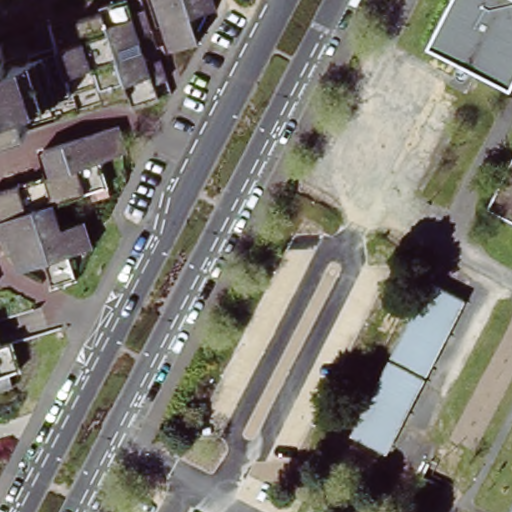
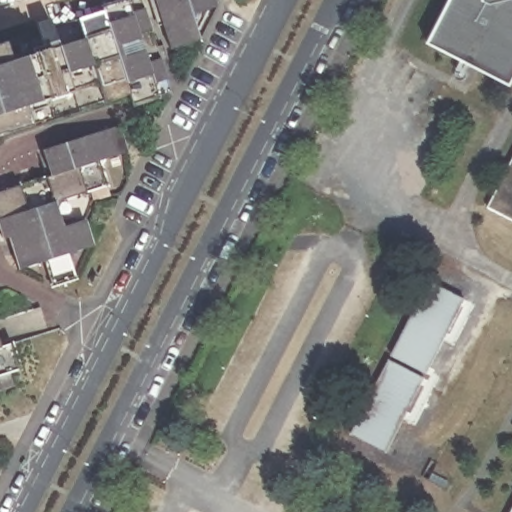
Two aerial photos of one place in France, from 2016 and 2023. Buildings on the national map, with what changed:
unchanged [(40,36),(39,29),(53,25),(55,31),(105,15),(105,10),(135,0),(142,0),(158,50),(163,66),(173,99),(136,110),(132,99),(0,141),(0,49),(40,36)]
unchanged [(216,11),(200,17),(195,25),(200,42),(201,45),(174,53),(165,28),(162,17),(157,20),(150,0),(215,0),(218,10),(216,11)]
unchanged [(430,46),(452,0),(512,0),(512,87),(511,89),(430,46)]
unchanged [(122,130),(128,156),(120,159),(107,163),(103,171),(110,190),(92,195),(63,205),(59,214),(64,230),(87,224),(95,250),(90,251),(77,256),(72,263),(76,277),(78,283),(55,290),(53,284),(47,265),(30,271),(22,273),(10,239),(5,240),(0,224),(0,196),(48,180),(54,179),(47,155),(46,154),(122,130)]
unchanged [(512,170),(512,227),(488,215),(512,170)]
unchanged [(422,372),(400,359),(435,285),(460,298),(422,372)]
unchanged [(3,350),(15,347),(22,372),(11,376),(15,388),(0,393),(0,341),(3,350)]
unchanged [(377,465),(352,453),(393,373),(415,387),(377,465)]
unchanged [(512,512),(510,512),(512,508),(512,512)]

